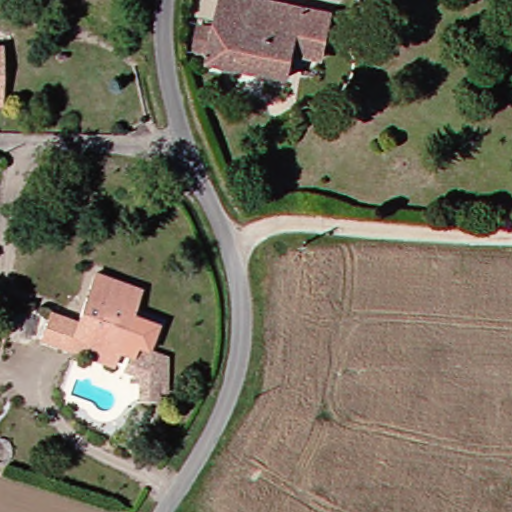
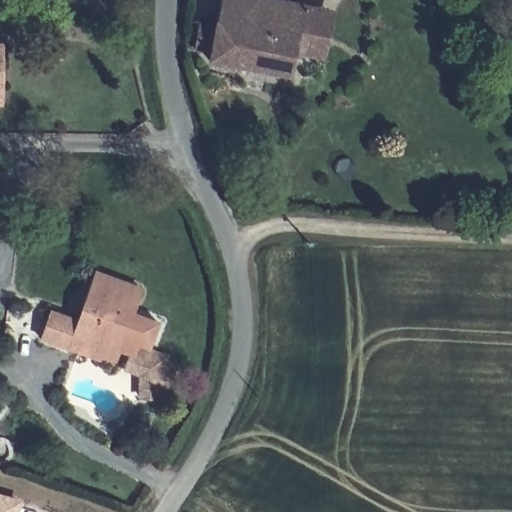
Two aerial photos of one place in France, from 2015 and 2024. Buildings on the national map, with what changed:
unchanged [(290,52),(285,73),(205,57),(216,0),(282,0),(298,3),(290,52)]
unchanged [(325,7),(317,56),(290,52),(298,3),(325,7)]
unchanged [(126,339),(125,345),(99,338),(97,343),(62,331),(59,343),(33,334),(40,307),(70,315),(85,267),(131,283),(123,307),(150,316),(141,344),(126,339)]
unchanged [(62,331),(97,343),(99,338),(125,345),(126,339),(141,344),(159,350),(158,387),(149,387),(149,394),(133,394),(119,365),(59,343),(62,331)]
new [(0,512),(0,494),(24,501),(20,512),(0,512)]

